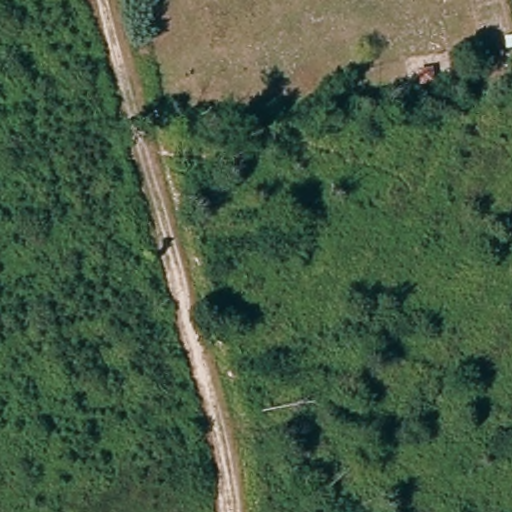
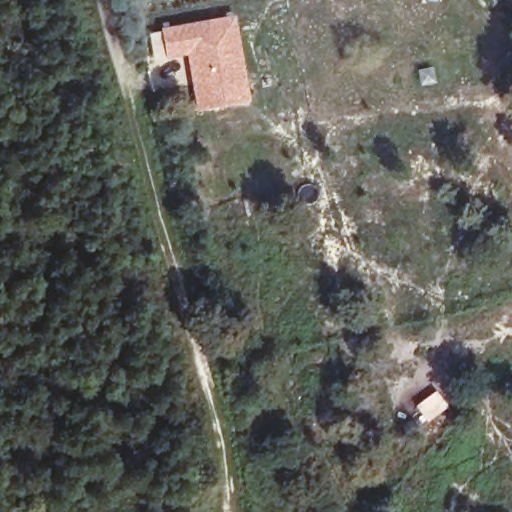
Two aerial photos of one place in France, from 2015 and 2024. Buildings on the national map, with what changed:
new [(185,22),(235,14),(251,102),(195,111),(184,56),(155,63),(147,32),(185,22)]

